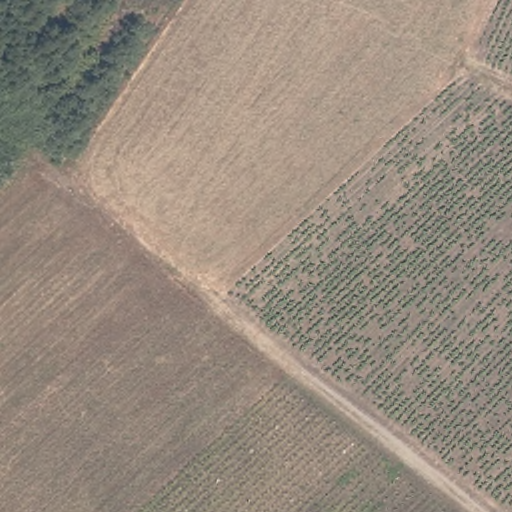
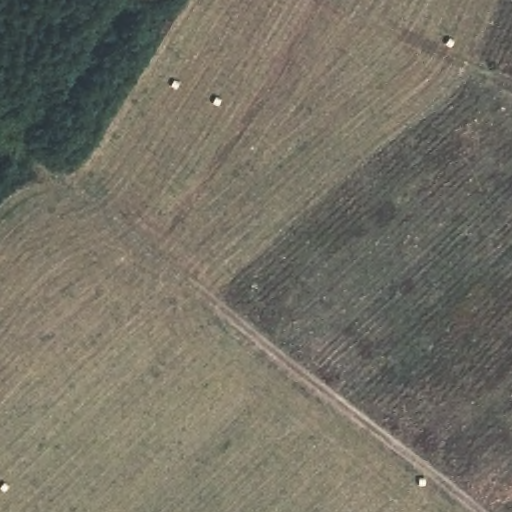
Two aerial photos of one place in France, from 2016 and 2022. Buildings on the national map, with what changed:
[]

